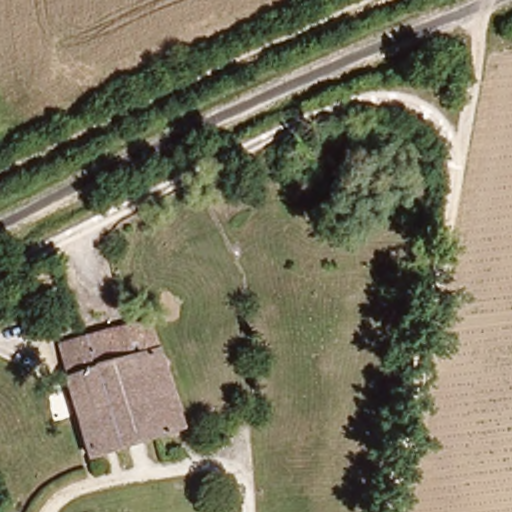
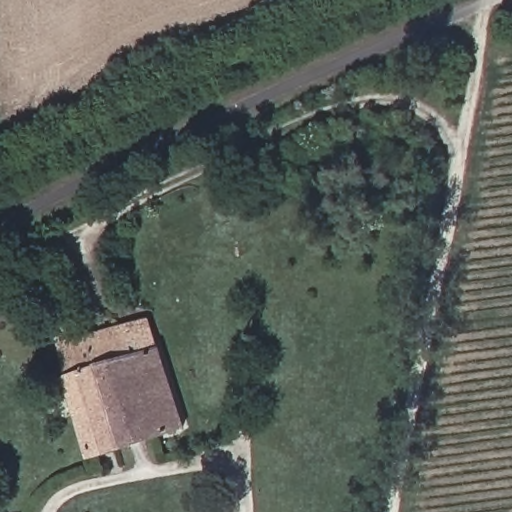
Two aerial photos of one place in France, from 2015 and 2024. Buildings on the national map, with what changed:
unchanged [(150,335),(157,333),(162,357),(155,359),(159,366),(167,364),(173,379),(164,384),(176,431),(90,458),(88,452),(72,399),(50,404),(40,373),(63,367),(54,342),(140,318),(150,335)]

